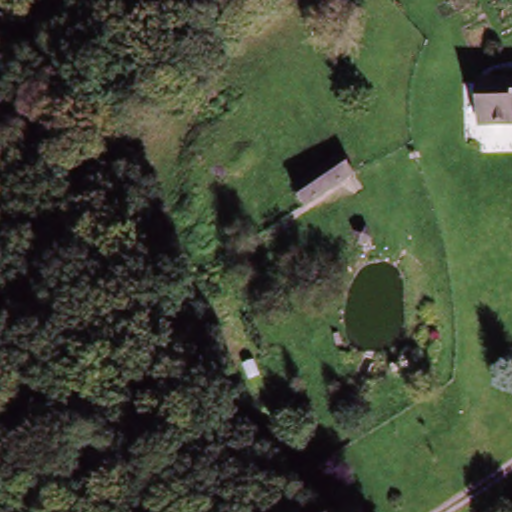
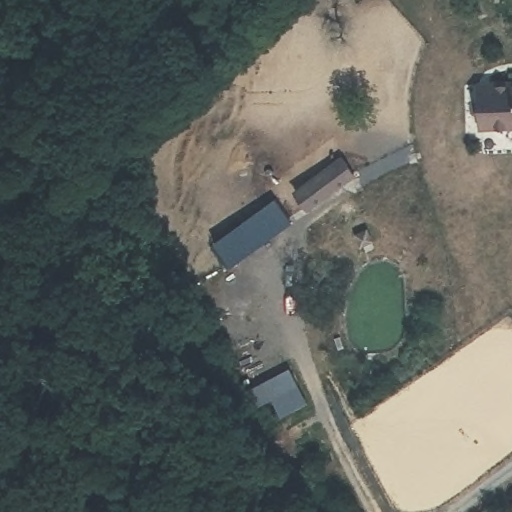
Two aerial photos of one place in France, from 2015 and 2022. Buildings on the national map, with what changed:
unchanged [(468,78),(512,80),(512,128),(478,129),(468,78)]
unchanged [(308,211),(292,190),(336,160),(353,178),(308,211)]
new [(291,221),(231,265),(215,241),(274,197),(291,221)]
new [(280,416),(271,399),(258,406),(249,388),(288,368),(306,403),(280,416)]

